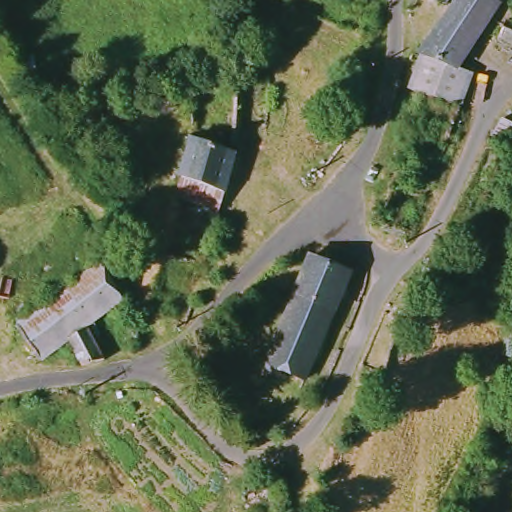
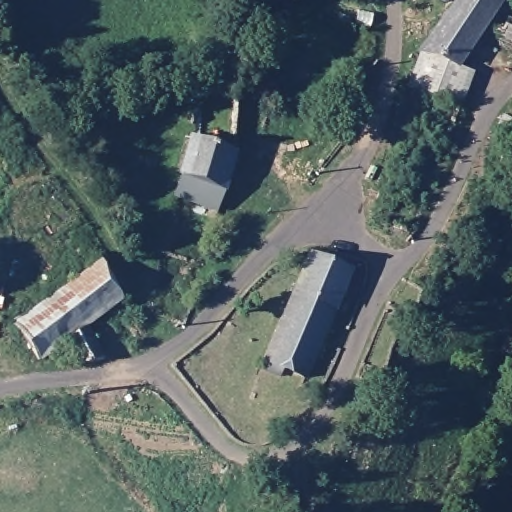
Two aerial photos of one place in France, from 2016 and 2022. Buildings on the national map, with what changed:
unchanged [(458,0),(490,0),(494,1),(469,69),(434,56),(458,0)]
unchanged [(439,0),(454,0),(452,4),(439,0)]
unchanged [(506,24),(512,26),(512,47),(507,44),(500,42),(506,24)]
unchanged [(479,72),(477,81),(465,111),(457,108),(422,96),(421,95),(434,56),(469,69),(479,72)]
unchanged [(181,202),(183,195),(185,182),(191,144),(196,144),(235,155),(227,194),(223,214),(181,202)]
unchanged [(276,373),(311,268),(321,269),(323,262),(354,261),(315,385),(276,373)]
unchanged [(104,269),(123,306),(91,329),(108,354),(89,368),(73,342),(45,362),(19,327),(104,269)]

